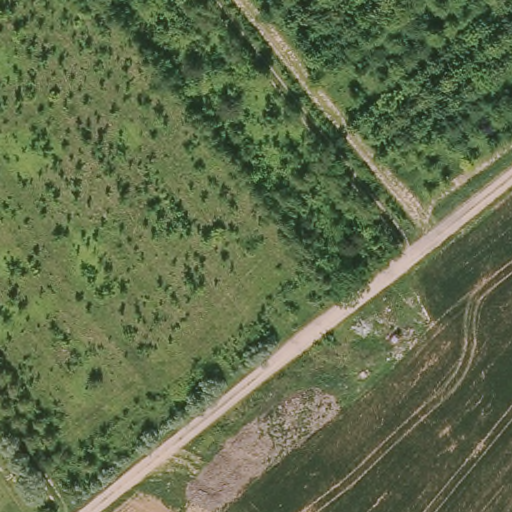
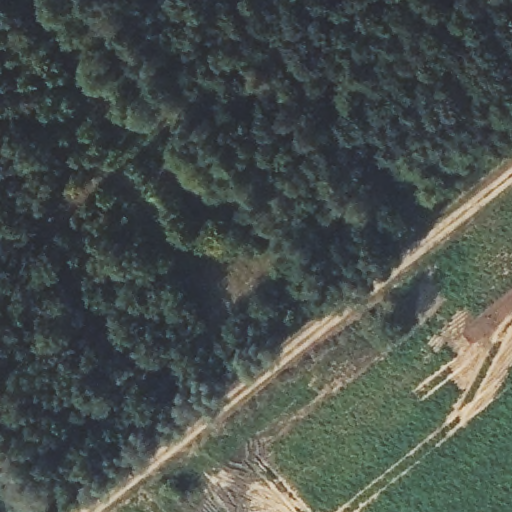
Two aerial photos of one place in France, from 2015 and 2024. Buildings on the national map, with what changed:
[]

